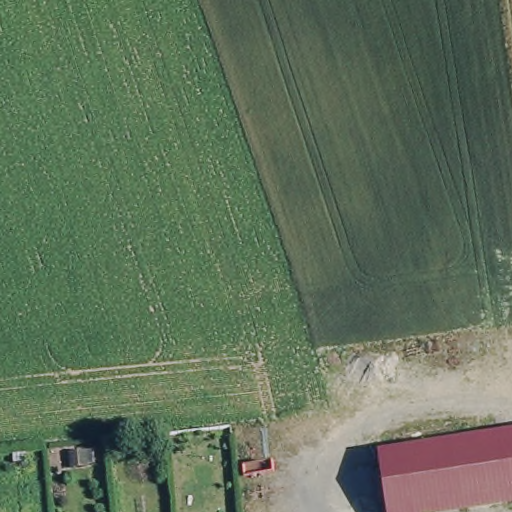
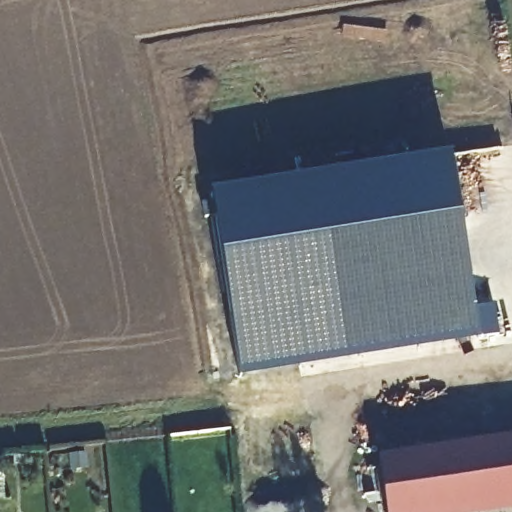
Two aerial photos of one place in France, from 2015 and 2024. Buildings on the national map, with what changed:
new [(456,156),(480,337),(238,376),(215,194),(456,156)]
unchanged [(378,459),(378,456),(512,436),(512,510),(499,512),(386,512),(378,459)]
demolished [(378,459),(386,512),(361,512),(354,463),(378,459)]

